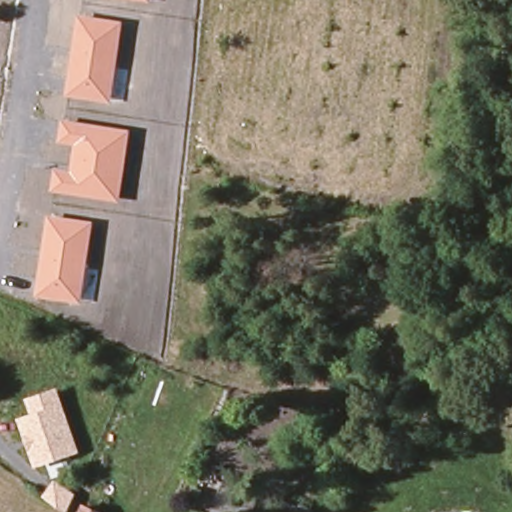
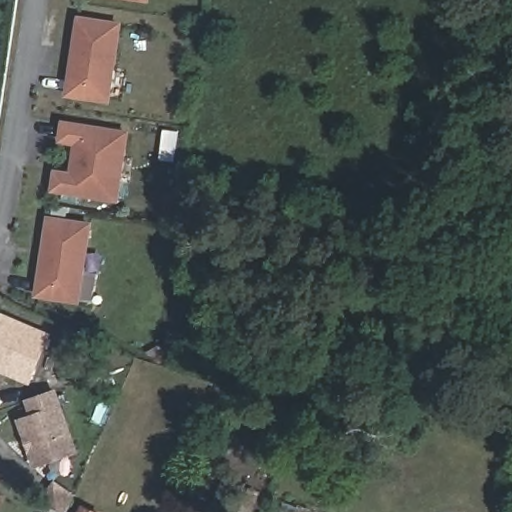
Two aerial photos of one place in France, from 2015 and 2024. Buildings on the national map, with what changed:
unchanged [(140,0),(150,0),(150,1),(140,0)]
unchanged [(78,15),(122,21),(111,103),(66,96),(78,15)]
unchanged [(75,144),(58,142),(61,120),(131,129),(120,202),(50,192),(54,168),(70,170),(75,144)]
unchanged [(81,303),(35,297),(49,215),(94,221),(81,303)]
new [(31,384),(0,372),(0,317),(2,311),(53,333),(31,384)]
unchanged [(35,467),(17,418),(30,413),(25,398),(58,386),(80,452),(35,467)]
unchanged [(80,510),(84,512),(80,512),(80,510)]

